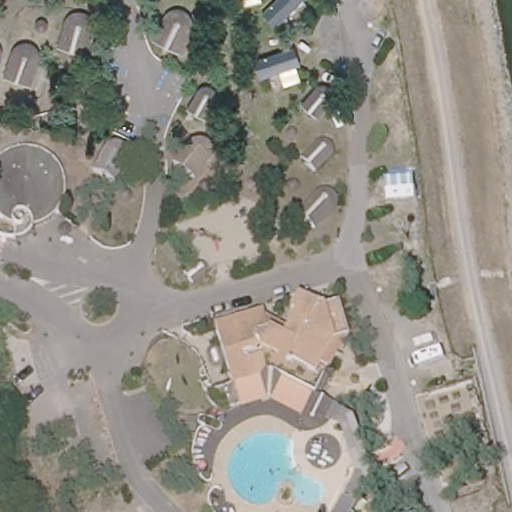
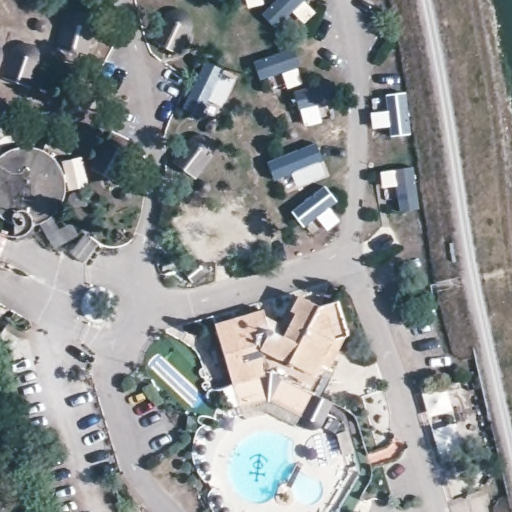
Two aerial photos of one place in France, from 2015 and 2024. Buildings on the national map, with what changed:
unchanged [(37,226),(16,226),(0,219),(0,155),(11,148),(30,145),(51,151),(62,165),(66,182),(63,202),(57,214),(49,221),(37,226)]
unchanged [(273,370),(235,381),(218,320),(264,305),(266,313),(291,325),(298,313),(290,309),(300,293),(319,303),(339,297),(350,334),(317,391),(273,370)]
unchanged [(374,468),(354,475),(341,426),(325,420),(314,431),(310,418),(321,396),(359,417),(374,468)]

